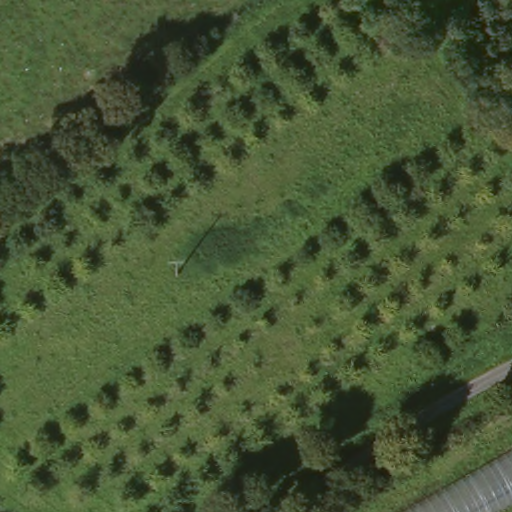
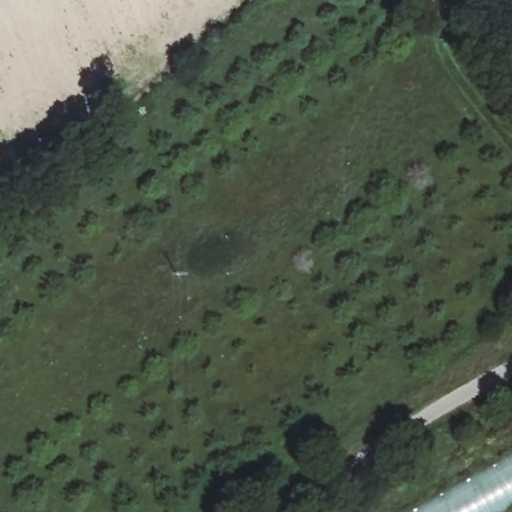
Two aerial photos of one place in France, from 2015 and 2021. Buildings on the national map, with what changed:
unchanged [(512,512),(408,512),(512,454),(512,512)]

